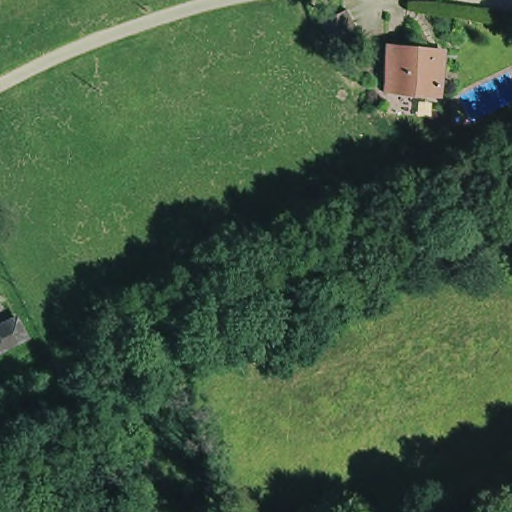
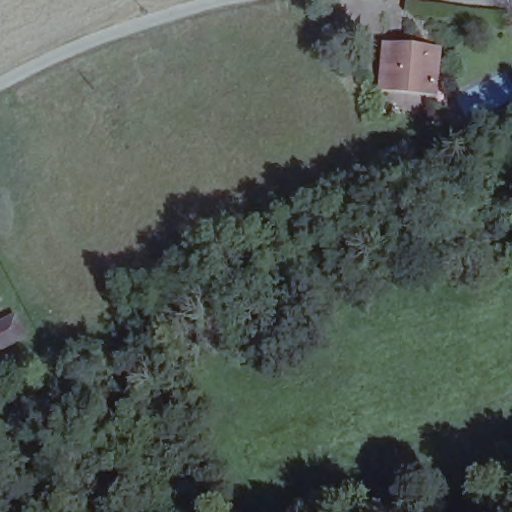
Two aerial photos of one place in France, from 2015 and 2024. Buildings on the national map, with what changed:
unchanged [(434,98),(428,101),(383,95),(377,78),(381,36),(434,40),(429,84),(432,84),(434,98)]
unchanged [(15,316),(26,337),(0,351),(0,324),(15,316)]

